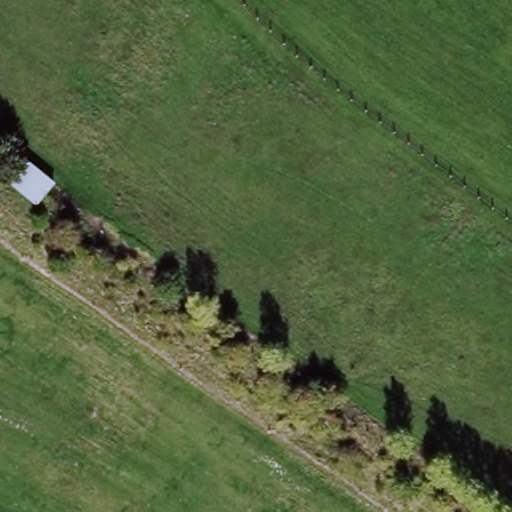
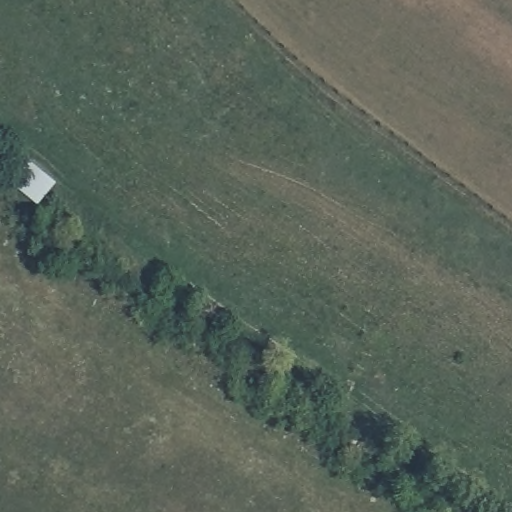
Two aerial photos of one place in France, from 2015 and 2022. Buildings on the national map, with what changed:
unchanged [(7,185),(28,162),(58,185),(39,210),(7,185)]

